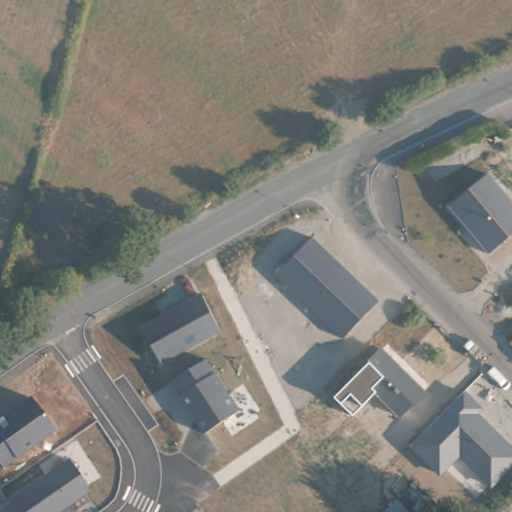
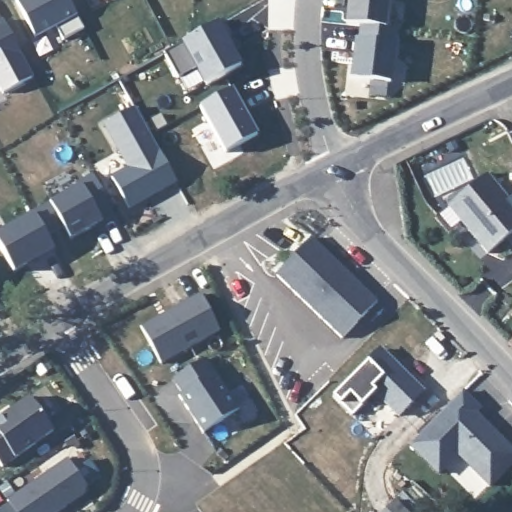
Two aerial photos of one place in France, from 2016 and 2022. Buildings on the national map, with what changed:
new [(13,0),(65,0),(80,29),(59,40),(51,25),(31,36),(12,0),(13,0)]
new [(346,0),(387,0),(384,26),(359,24),(344,21),(346,0)]
new [(34,77),(2,94),(0,90),(0,21),(3,19),(34,77)]
new [(220,19),(229,33),(224,36),(239,64),(204,83),(194,65),(175,76),(161,51),(220,19)]
new [(354,39),(358,40),(359,24),(384,26),(394,27),(389,80),(349,76),(354,39)]
new [(233,90),(258,135),(225,154),(200,107),(233,90)]
new [(126,210),(109,180),(126,170),(101,126),(131,109),(148,136),(174,183),(158,191),(149,196),(126,210)]
unchanged [(487,173),(512,204),(512,233),(489,254),(449,206),(487,173)]
new [(76,187),(74,184),(89,176),(108,210),(94,217),(98,224),(68,241),(60,228),(43,237),(30,216),(29,214),(76,187)]
new [(43,237),(51,253),(35,262),(34,260),(10,273),(0,255),(0,233),(30,216),(43,237)]
unchanged [(308,240),(374,301),(340,335),(278,275),(308,240)]
unchanged [(142,323),(198,291),(220,333),(160,364),(142,323)]
unchanged [(507,342),(509,340),(512,338),(512,348),(509,345),(507,342)]
unchanged [(423,390),(398,415),(361,377),(384,351),(423,390)]
unchanged [(205,360),(214,371),(239,410),(203,432),(179,395),(169,380),(205,360)]
unchanged [(364,403),(353,415),(339,403),(334,397),(369,361),(372,365),(361,377),(374,391),(364,403)]
unchanged [(494,489),(459,456),(439,476),(408,445),(463,390),(484,410),(478,415),(512,447),(512,465),(494,489)]
unchanged [(0,410),(24,394),(54,432),(18,458),(0,468),(0,467),(0,410)]
unchanged [(66,459),(85,486),(84,495),(61,512),(0,512),(0,509),(13,498),(66,459)]
unchanged [(409,512),(385,512),(399,500),(409,512)]

